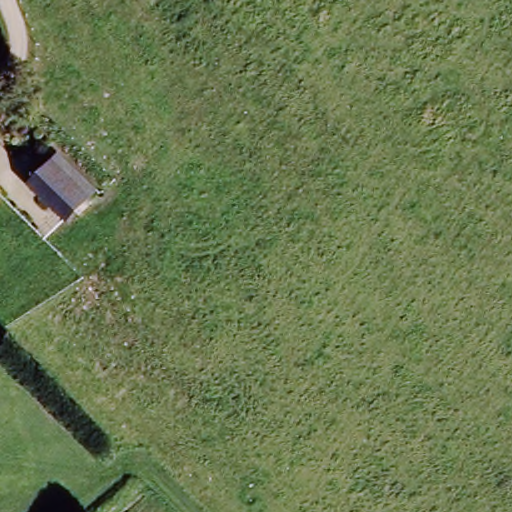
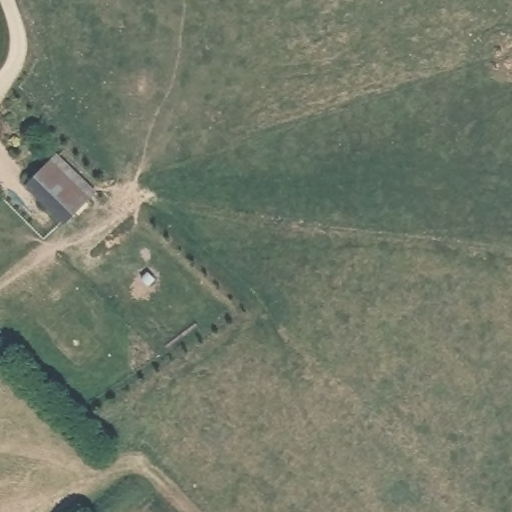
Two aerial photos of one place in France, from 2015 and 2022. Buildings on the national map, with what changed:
unchanged [(53,159),(96,200),(68,229),(24,188),(53,159)]

